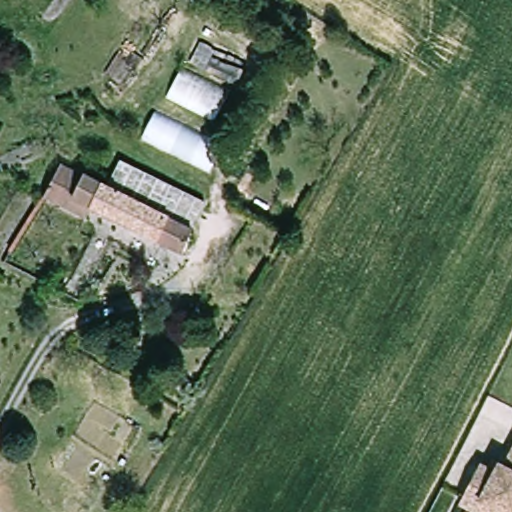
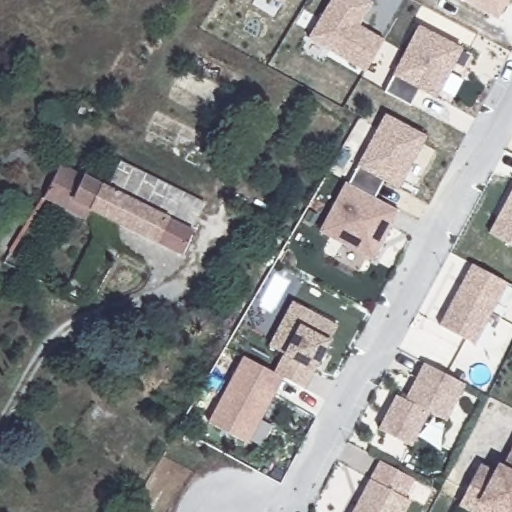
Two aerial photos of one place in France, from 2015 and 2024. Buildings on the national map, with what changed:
new [(274,0),(284,0),(282,5),(274,0)]
new [(360,25),(385,40),(365,72),(308,37),(331,0),(370,0),(374,2),(360,25)]
new [(462,0),(509,0),(497,20),(462,0)]
new [(464,47),(438,98),(420,90),(411,106),(384,92),(393,75),(419,24),(464,47)]
unchanged [(183,72),(233,95),(220,121),(171,95),(183,72)]
new [(427,135),(398,189),(384,182),(376,197),(401,210),(374,261),(319,231),(345,181),(350,184),(359,166),(357,165),(386,113),(427,135)]
unchanged [(160,119),(225,148),(217,171),(149,140),(160,119)]
unchanged [(65,162),(90,175),(108,183),(120,161),(209,202),(198,225),(187,252),(96,209),(88,221),(47,199),(65,162)]
new [(488,233),(512,187),(512,245),(488,233)]
unchanged [(5,270),(1,268),(4,263),(8,266),(5,270)]
new [(508,283),(489,320),(500,326),(493,338),(482,331),(475,344),(439,325),(472,263),(508,283)]
unchanged [(252,273),(257,275),(254,279),(250,276),(252,273)]
new [(338,324),(330,340),(315,371),(306,388),(284,377),(248,443),(208,422),(243,356),(274,372),(284,355),(282,355),(284,352),(268,345),(292,300),(338,324)]
new [(405,398),(425,362),(466,385),(447,421),(430,412),(413,446),(378,429),(395,395),(405,398)]
unchanged [(466,491),(479,466),(494,473),(498,466),(503,468),(512,450),(512,512),(471,512),(459,505),(466,491)]
new [(370,478),(381,460),(416,479),(406,497),(412,500),(406,512),(353,512),(370,478)]

